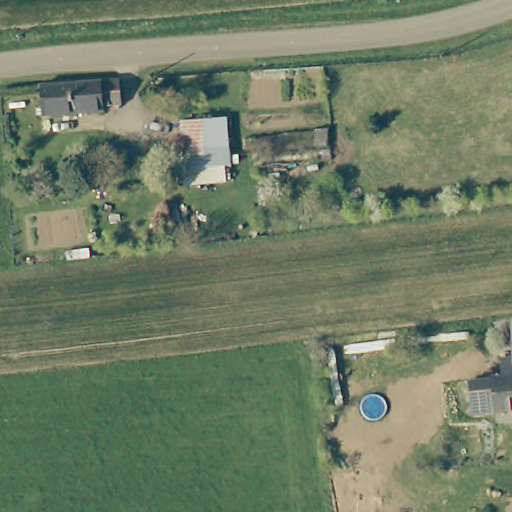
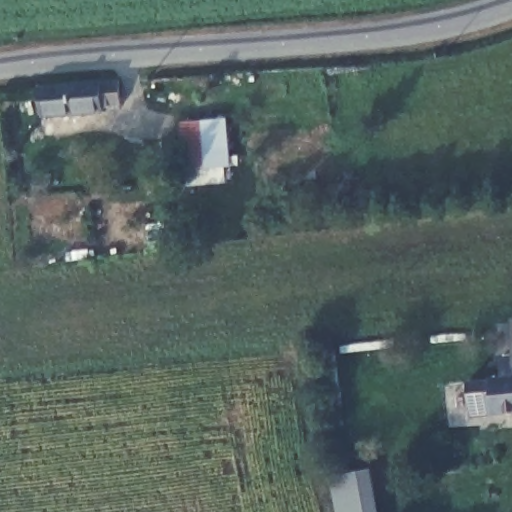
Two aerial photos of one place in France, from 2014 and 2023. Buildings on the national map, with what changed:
unchanged [(104,111),(105,115),(41,117),(37,87),(117,84),(118,111),(104,111)]
unchanged [(230,122),(226,175),(226,177),(214,177),(185,175),(190,120),(230,122)]
unchanged [(505,370),(503,352),(512,352),(512,404),(497,405),(496,402),(474,404),(472,375),(493,373),(493,371),(505,370)]
new [(371,467),(379,512),(337,512),(332,476),(371,467)]

